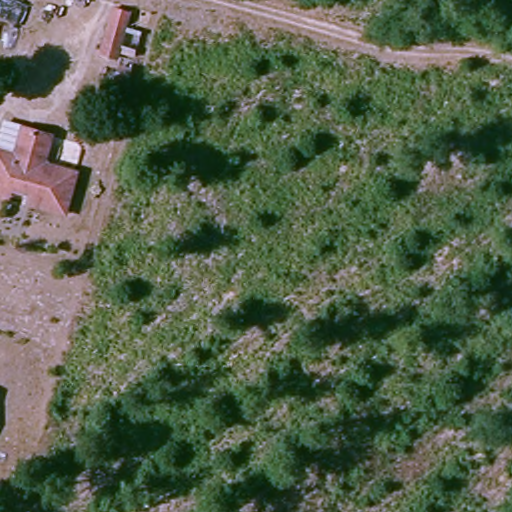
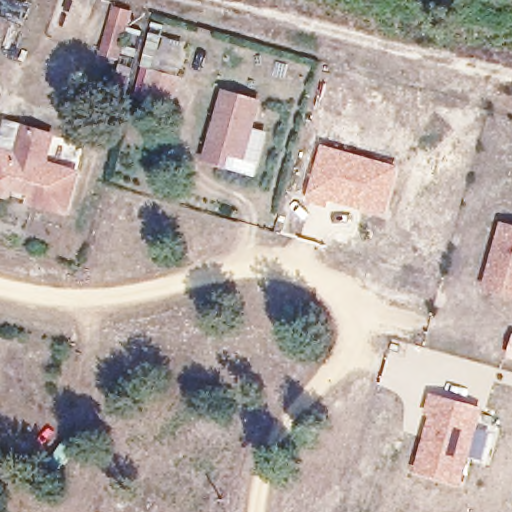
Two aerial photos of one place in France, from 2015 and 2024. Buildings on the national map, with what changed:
unchanged [(130,25),(123,54),(104,49),(111,20),(130,25)]
new [(181,78),(172,111),(141,103),(149,68),(181,78)]
new [(230,155),(227,168),(202,163),(222,90),(261,100),(245,159),(230,155)]
unchanged [(37,197),(40,185),(12,177),(9,189),(0,186),(0,142),(20,147),(24,125),(55,132),(50,156),(74,162),(62,204),(37,197)]
new [(321,144),(398,166),(385,215),(327,202),(326,206),(306,201),(321,144)]
new [(500,222),(512,225),(512,295),(481,289),(500,222)]
new [(512,337),(512,359),(505,357),(512,337)]
new [(425,417),(429,391),(483,406),(461,487),(413,473),(425,417)]

